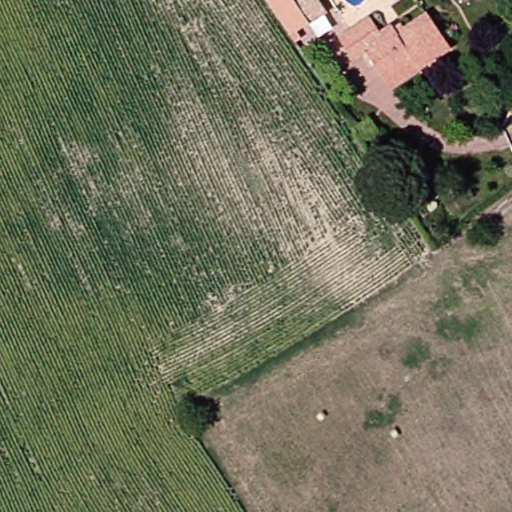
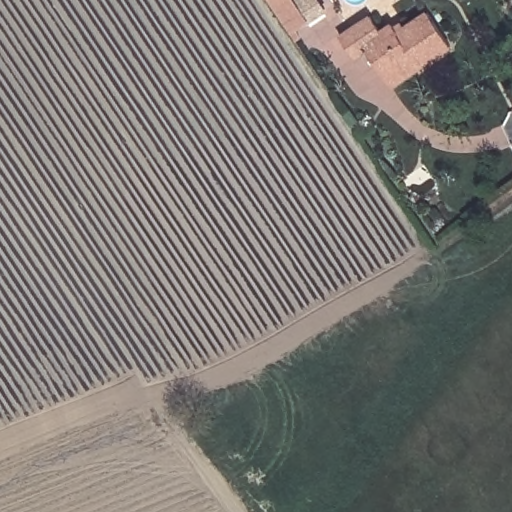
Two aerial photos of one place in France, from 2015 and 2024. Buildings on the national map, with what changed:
unchanged [(326,0),(330,6),(312,18),(293,29),(275,0),(326,0)]
unchanged [(390,79),(370,46),(355,56),(342,36),(376,14),(388,34),(402,25),(407,32),(432,15),(455,51),(430,68),(422,57),(390,79)]

